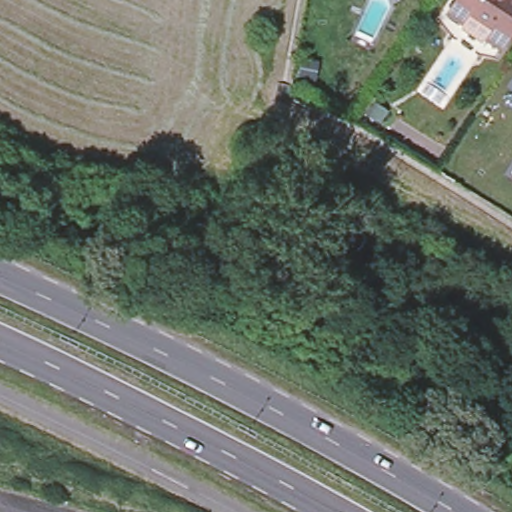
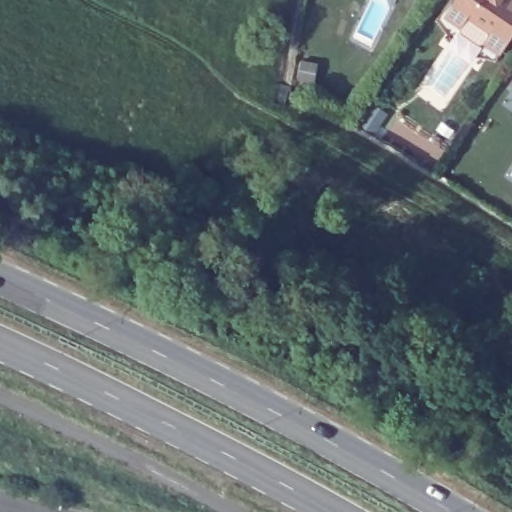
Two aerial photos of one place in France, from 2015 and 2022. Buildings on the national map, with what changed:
unchanged [(512,28),(500,45),(483,34),(490,24),(468,9),(461,19),(445,7),(450,0),(512,0),(512,28)]

